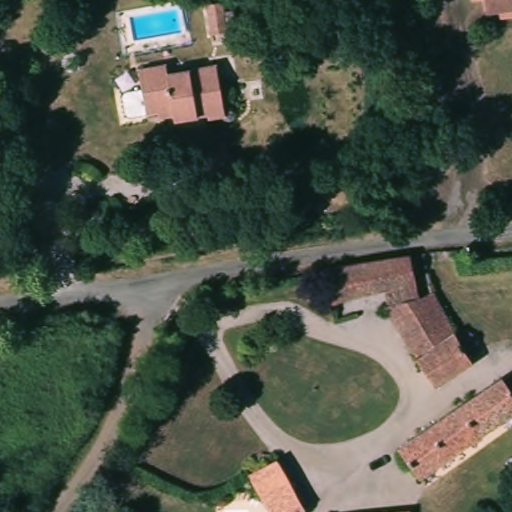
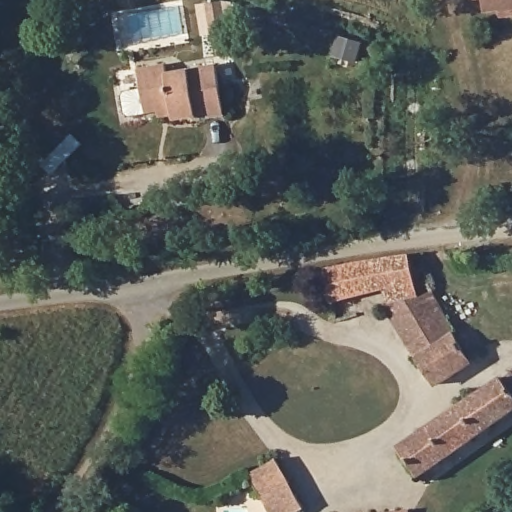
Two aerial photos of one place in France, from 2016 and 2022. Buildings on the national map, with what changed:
unchanged [(485,13),(469,15),(467,5),(455,7),(454,0),(512,0),(512,19),(487,25),(485,13)]
unchanged [(217,9),(218,36),(204,37),(202,10),(217,9)]
unchanged [(168,64),(169,71),(225,62),(231,116),(214,117),(214,112),(179,117),(178,107),(146,111),(142,66),(168,64)]
unchanged [(390,311),(387,295),(329,303),(322,269),(406,255),(422,297),(432,293),(463,340),(476,334),(486,348),(471,355),(475,361),(434,386),(382,312),(390,311)]
unchanged [(512,407),(426,470),(407,440),(503,371),(512,385),(512,407)]
unchanged [(278,459),(298,510),(293,512),(267,512),(250,471),(278,459)]
unchanged [(416,508),(417,512),(373,512),(416,508)]

